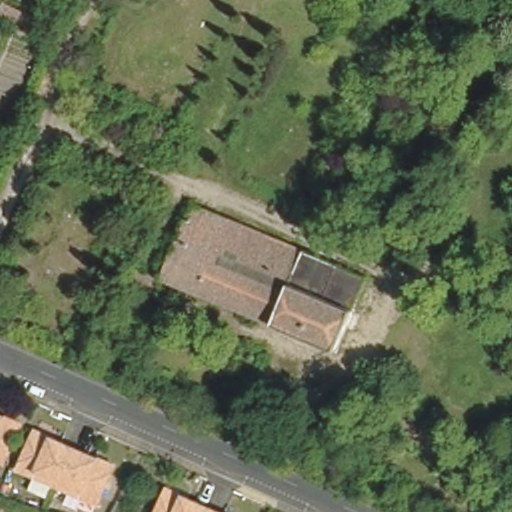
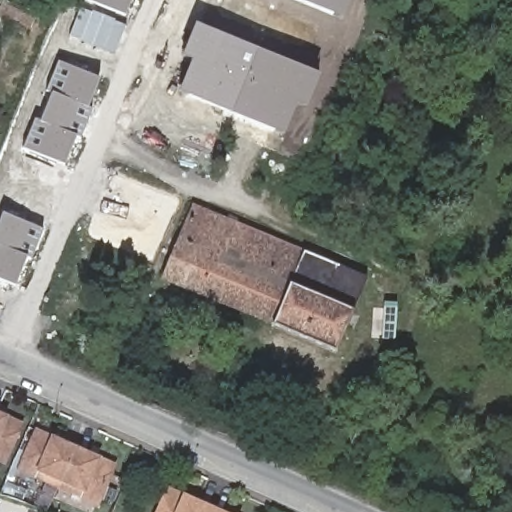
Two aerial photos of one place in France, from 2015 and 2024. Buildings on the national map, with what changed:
new [(124,15),(87,0),(130,0),(124,15)]
new [(342,16),(302,0),(350,0),(342,16)]
unchanged [(34,18),(30,30),(2,17),(7,6),(34,18)]
new [(320,75),(306,105),(296,101),(283,134),(177,91),(189,64),(192,68),(195,61),(181,55),(188,38),(192,40),(194,35),(190,33),(193,25),(320,75)]
new [(87,106),(92,109),(80,138),(75,135),(64,164),(22,149),(35,119),(40,120),(52,91),(46,90),(58,60),(100,77),(87,106)]
unchanged [(363,276),(335,347),(165,278),(194,207),(363,276)]
new [(26,256),(15,285),(0,279),(0,218),(2,212),(43,229),(31,258),(26,256)]
unchanged [(2,462),(0,462),(0,414),(20,423),(2,462)]
unchanged [(35,424),(114,460),(95,500),(18,464),(35,424)]
unchanged [(224,512),(156,512),(167,486),(224,512)]

